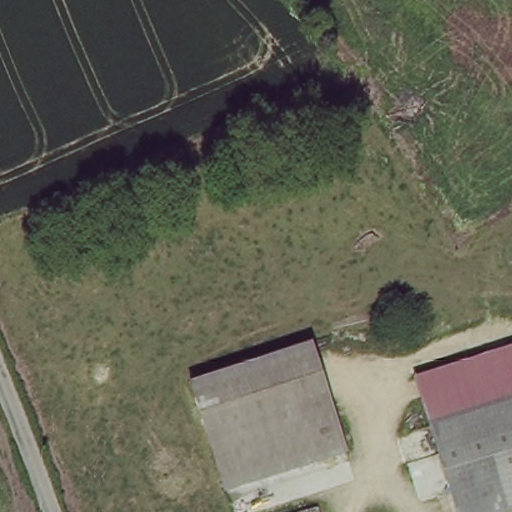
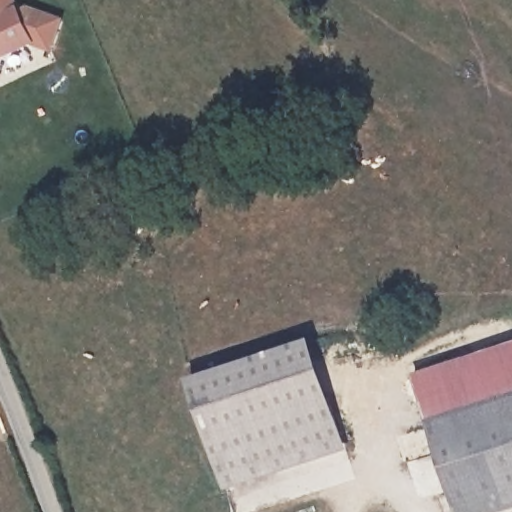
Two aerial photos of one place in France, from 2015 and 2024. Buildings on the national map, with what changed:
new [(17,11),(27,7),(57,19),(47,47),(29,40),(0,54),(0,0),(12,0),(17,11)]
unchanged [(408,358),(512,325),(512,431),(438,452),(408,358)]
unchanged [(312,345),(345,444),(227,485),(195,387),(312,345)]
unchanged [(458,512),(437,453),(438,452),(512,431),(512,512),(458,512)]

